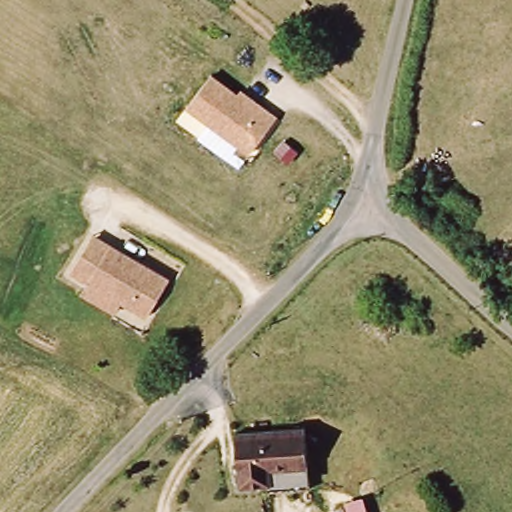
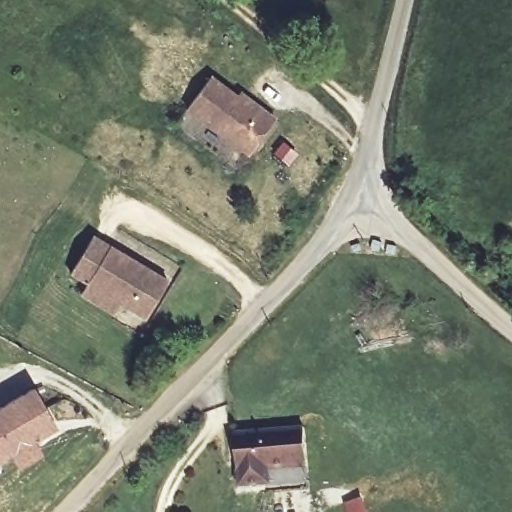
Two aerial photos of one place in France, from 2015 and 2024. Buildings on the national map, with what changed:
unchanged [(210,75),(235,95),(240,89),(277,115),(247,155),(185,109),(210,75)]
unchanged [(72,272),(94,242),(110,252),(114,249),(170,289),(145,323),(122,307),(115,316),(82,293),(89,283),(72,272)]
new [(35,390),(57,431),(0,463),(0,411),(35,390)]
unchanged [(241,482),(239,432),(303,428),(307,488),(272,489),(273,480),(241,482)]
unchanged [(369,512),(346,512),(343,502),(365,496),(369,512)]

